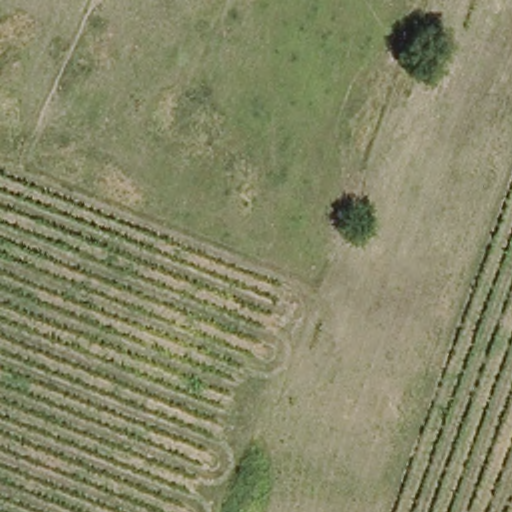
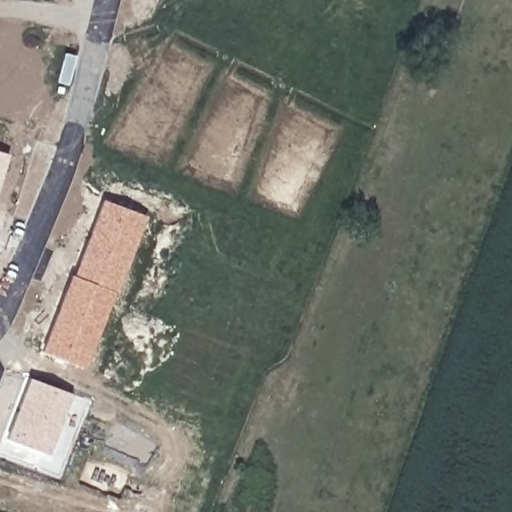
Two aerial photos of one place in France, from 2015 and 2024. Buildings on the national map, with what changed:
new [(8,155),(0,179),(0,152),(8,155)]
new [(117,292),(114,291),(86,367),(41,351),(71,275),(72,275),(101,199),(146,216),(117,292)]
new [(50,454),(6,438),(29,377),(72,393),(50,454)]

